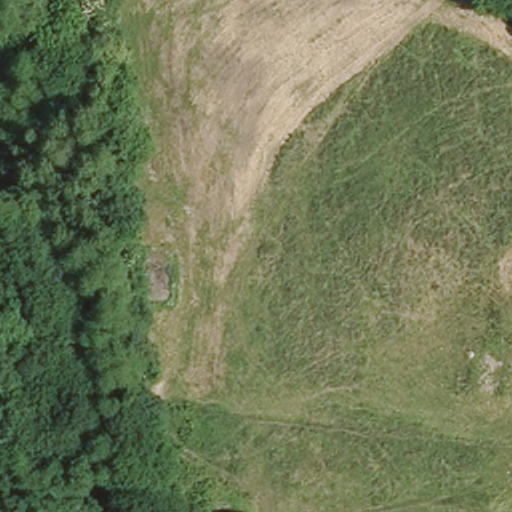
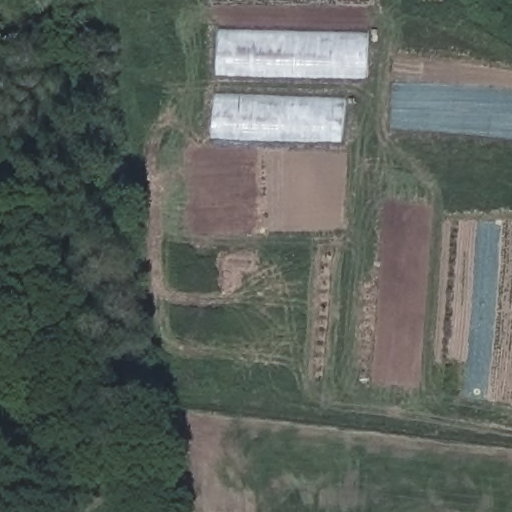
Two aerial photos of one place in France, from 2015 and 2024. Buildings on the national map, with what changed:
new [(216,76),(218,31),(369,35),(367,79),(216,76)]
new [(342,100),(341,142),(212,139),(214,96),(342,100)]

